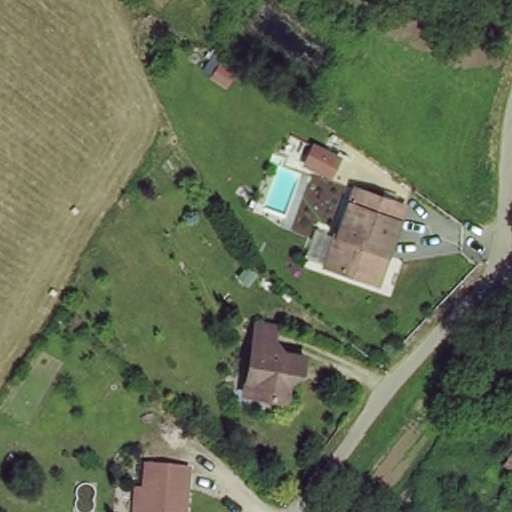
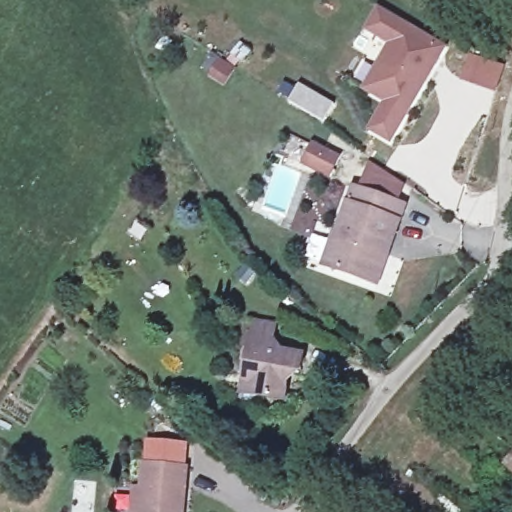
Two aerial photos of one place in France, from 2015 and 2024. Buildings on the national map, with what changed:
new [(385,103),(360,91),(388,45),(364,33),(377,6),(449,45),(392,146),(367,131),(385,103)]
new [(327,123),(317,117),(312,114),(292,104),(302,86),(319,96),(327,100),(337,106),(327,123)]
unchanged [(399,202),(392,199),(362,188),(368,162),(403,183),(399,202)]
unchanged [(318,262),(329,230),(333,232),(351,184),(392,199),(402,203),(397,217),(383,250),(370,281),(362,278),(318,262)]
unchanged [(238,374),(244,340),(248,317),(269,320),(265,344),(295,349),(292,367),(282,365),(277,394),(247,388),(237,387),(238,374)]
unchanged [(500,464),(512,446),(512,474),(500,464)]
unchanged [(181,470),(176,512),(125,512),(127,486),(136,487),(137,465),(181,470)]

